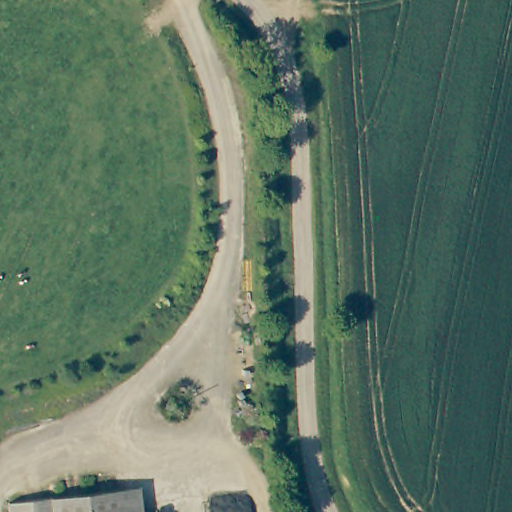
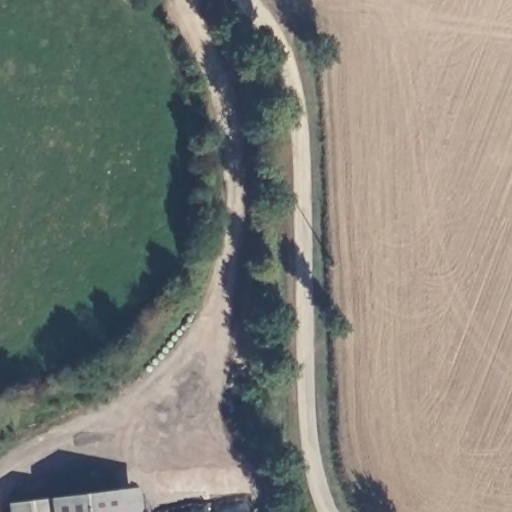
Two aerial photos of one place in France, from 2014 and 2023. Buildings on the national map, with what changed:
unchanged [(120,512),(6,512),(5,501),(116,487),(120,512)]

